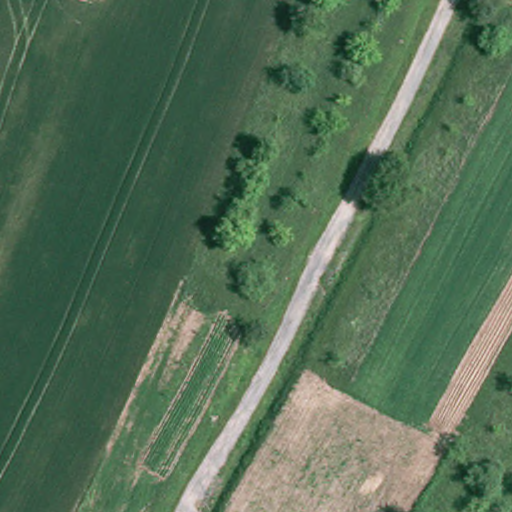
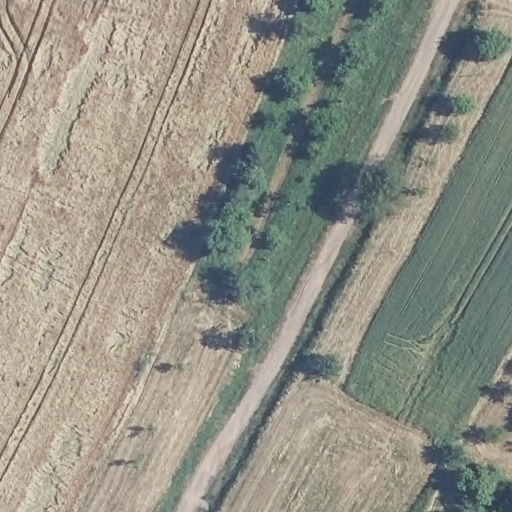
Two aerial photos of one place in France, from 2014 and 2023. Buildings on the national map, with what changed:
[]

